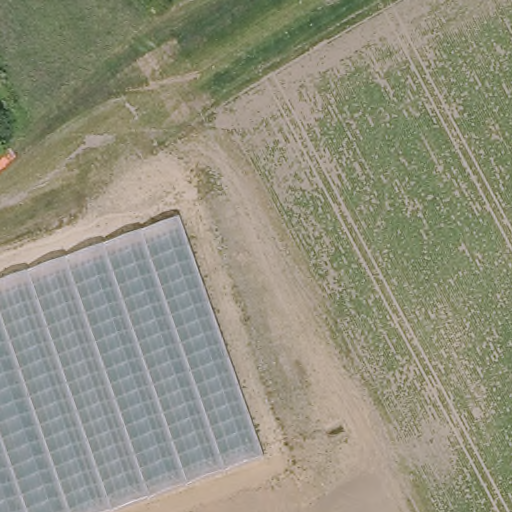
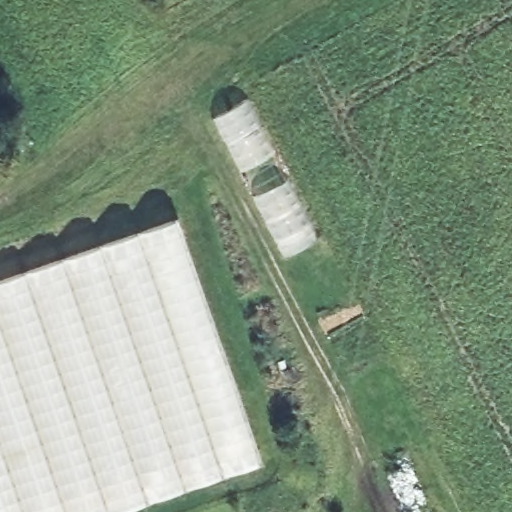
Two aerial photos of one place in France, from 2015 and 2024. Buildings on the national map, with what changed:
new [(325,241),(285,259),(214,117),(248,101),(325,241)]
unchanged [(262,460),(118,512),(0,512),(0,282),(179,219),(262,460)]

